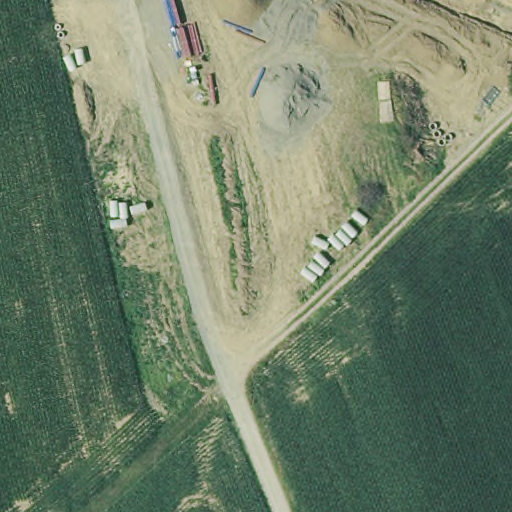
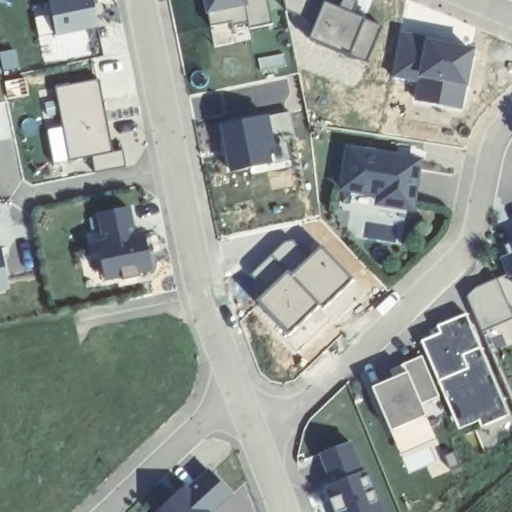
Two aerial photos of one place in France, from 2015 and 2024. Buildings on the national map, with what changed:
new [(94,6),(99,29),(57,37),(49,0),(98,0),(98,5),(94,6)]
new [(248,27),(246,5),(204,14),(201,0),(267,0),(271,22),(248,27)]
new [(285,10),(283,0),(309,0),(301,16),(285,10)]
new [(350,56),(309,39),(324,4),(339,10),(342,0),(347,0),(357,4),(354,15),(364,19),(382,27),(367,63),(350,56)]
new [(399,30),(474,49),(461,110),(413,100),(416,83),(389,77),(399,30)]
new [(113,152),(123,151),(126,167),(95,174),(91,157),(70,161),(56,89),(99,81),(113,152)]
new [(266,115),(274,143),(265,146),(271,165),(226,172),(214,126),(266,115)]
new [(376,197),(339,192),(346,147),(423,158),(416,212),(375,207),(376,197)]
new [(136,232),(145,231),(153,272),(104,282),(96,242),(101,240),(97,215),(131,207),(136,232)]
new [(318,240),(353,277),(289,338),(249,302),(318,240)]
unchanged [(0,285),(0,267),(3,284),(0,285)]
new [(511,272),(512,271),(512,274),(511,272)]
new [(496,281),(512,318),(512,320),(480,332),(463,293),(496,281)]
new [(421,406),(425,417),(390,432),(372,388),(394,378),(390,369),(421,357),(439,397),(421,406)]
new [(324,487),(330,485),(319,455),(351,442),(364,472),(368,471),(384,512),(334,512),(324,487)]
new [(213,512),(158,512),(185,485),(188,487),(208,470),(233,495),(213,512)]

